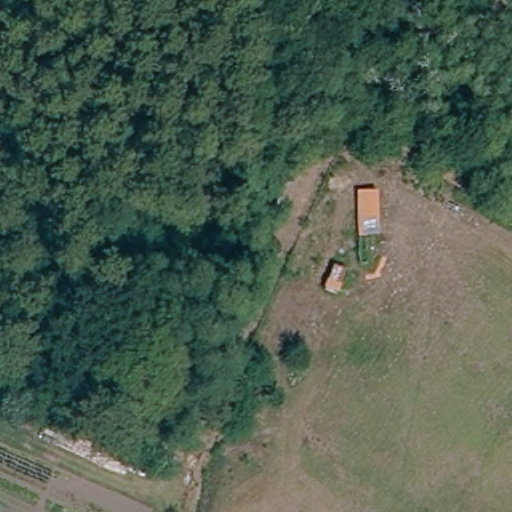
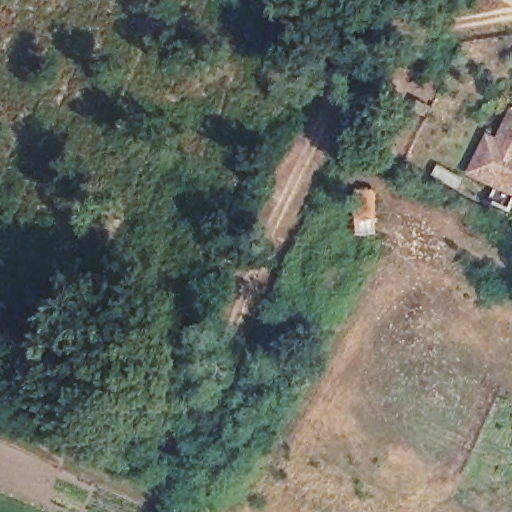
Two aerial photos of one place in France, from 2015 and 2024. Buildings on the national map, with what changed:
new [(468,175),(487,133),(497,138),(511,106),(512,106),(512,196),(468,175)]
unchanged [(381,238),(358,238),(358,194),(379,193),(381,238)]
demolished [(3,376),(10,361),(40,375),(36,382),(34,389),(3,376)]
unchanged [(31,421),(28,428),(0,416),(0,408),(4,400),(34,414),(39,416),(36,423),(31,421)]

